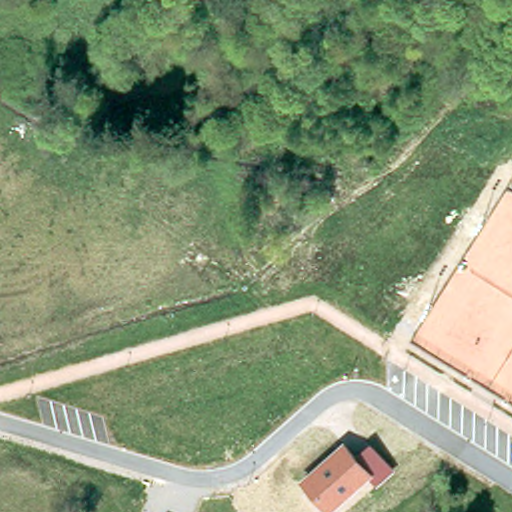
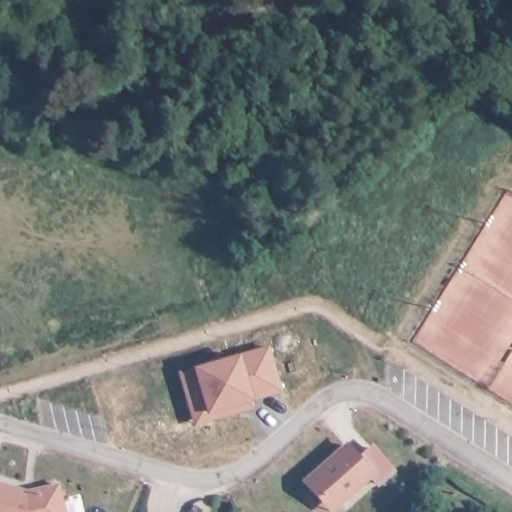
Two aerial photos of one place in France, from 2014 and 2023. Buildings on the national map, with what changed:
new [(185,396),(177,371),(265,345),(278,388),(247,396),(250,404),(236,408),(206,416),(192,420),(185,396)]
unchanged [(358,456),(375,441),(396,468),(380,483),(373,477),(334,512),(329,512),(300,481),(345,441),(358,456)]
new [(30,490),(59,483),(66,512),(0,512),(0,481),(30,490)]

